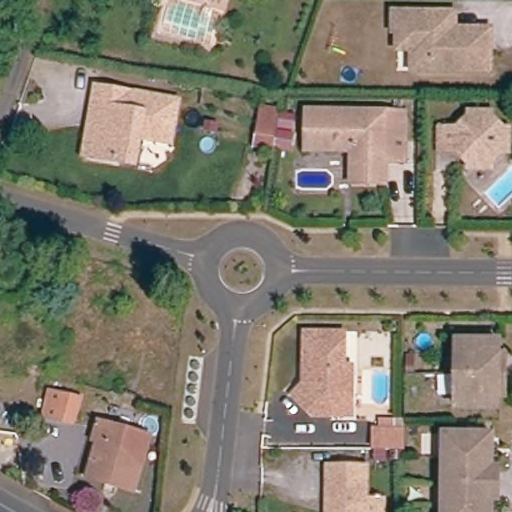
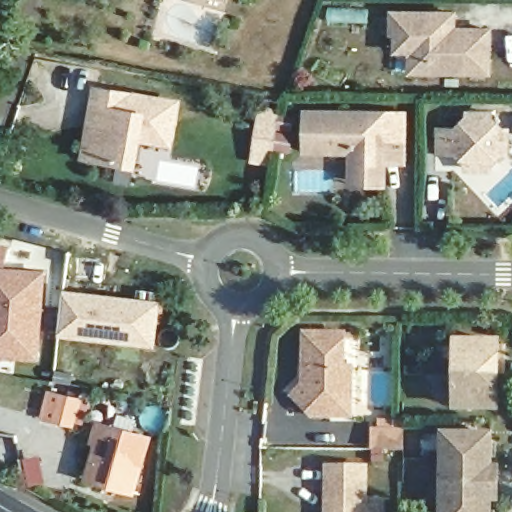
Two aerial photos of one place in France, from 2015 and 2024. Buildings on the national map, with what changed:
unchanged [(213,0),(227,0),(226,4),(213,0)]
unchanged [(396,30),(392,30),(392,8),(451,9),(451,24),(472,25),(490,25),(490,68),(411,67),(411,47),(396,47),(396,30)]
unchanged [(120,160),(92,155),(85,154),(97,84),(105,85),(178,99),(171,139),(141,134),(140,140),(136,162),(120,160)]
unchanged [(257,147),(261,125),(263,110),(280,113),(278,127),(275,150),(257,147)]
unchanged [(440,142),(440,125),(457,125),(470,114),(470,110),(492,110),(492,114),(503,125),(507,126),(507,149),(503,149),(492,160),(492,164),(469,164),(469,160),(457,149),(452,148),(440,148),(440,142)]
unchanged [(353,186),(353,169),(353,164),(307,163),(308,112),(405,114),(404,164),(387,164),(387,169),(387,186),(353,186)]
demolished [(34,255),(30,267),(0,259),(0,245),(34,255)]
new [(0,359),(0,245),(10,247),(6,267),(47,270),(41,360),(0,359)]
new [(60,337),(65,289),(162,301),(156,347),(60,337)]
unchanged [(330,418),(313,418),(292,398),(303,386),(303,365),(303,335),(343,335),(343,367),(351,367),(351,407),(351,418),(330,418)]
unchanged [(505,392),(499,392),(499,408),(455,408),(455,344),(500,345),(500,361),(505,361),(505,392)]
unchanged [(44,416),(50,392),(80,401),(73,425),(44,416)]
unchanged [(373,451),(374,430),(379,430),(379,421),(405,422),(405,431),(405,451),(373,451)]
unchanged [(134,495),(88,481),(99,447),(93,446),(99,429),(117,435),(129,438),(150,445),(134,495)]
unchanged [(500,470),(500,500),(492,500),(492,512),(443,512),(444,435),(493,435),(492,470),(500,470)]
unchanged [(328,468),(367,468),(367,512),(328,512),(328,468)]

